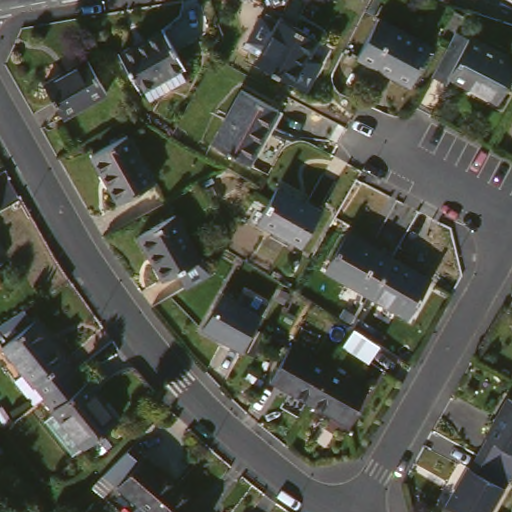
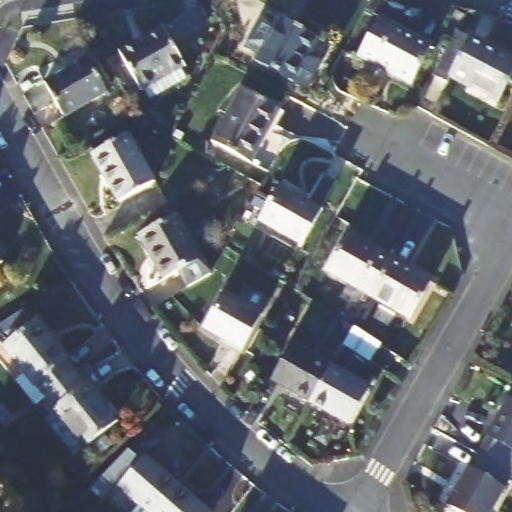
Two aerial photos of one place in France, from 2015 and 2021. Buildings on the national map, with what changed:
unchanged [(391,12),(445,42),(425,79),(370,50),(391,12)]
unchanged [(319,85),(306,78),(268,57),(293,13),(331,33),(322,49),(335,57),(319,85)]
unchanged [(154,90),(147,77),(145,79),(123,43),(167,18),(187,55),(184,57),(190,70),(154,90)]
unchanged [(470,24),(470,22),(512,45),(512,93),(511,94),(465,69),(462,74),(447,66),(470,24)]
unchanged [(96,53),(115,89),(72,114),(52,79),(96,53)]
unchanged [(250,83),(287,103),(257,157),(220,137),(250,83)]
unchanged [(142,129),(169,178),(134,197),(106,150),(142,129)]
unchanged [(292,180),(335,205),(315,240),(272,216),(292,180)]
unchanged [(184,208),(210,253),(219,270),(199,281),(189,265),(172,274),(147,229),(184,208)]
unchanged [(0,224),(0,211),(6,221),(0,224)]
unchanged [(335,265),(356,227),(400,252),(377,290),(335,265)]
unchanged [(15,259),(0,268),(0,230),(9,246),(15,259)]
unchanged [(400,252),(440,275),(417,314),(377,290),(400,252)]
unchanged [(252,280),(276,294),(268,308),(270,308),(250,345),(211,323),(231,286),(245,294),(252,280)]
unchanged [(51,312),(82,350),(80,351),(89,363),(86,365),(59,387),(49,395),(30,370),(38,364),(17,338),(51,312)]
unchanged [(378,343),(368,360),(342,343),(353,327),(378,343)]
unchanged [(285,375),(304,339),(342,360),(322,396),(285,375)]
unchanged [(342,360),(381,382),(361,419),(322,396),(342,360)]
unchanged [(58,413),(70,402),(59,387),(86,365),(89,363),(98,375),(100,373),(131,412),(99,438),(87,448),(58,413)]
unchanged [(497,433),(494,431),(512,400),(512,463),(487,449),(497,433)]
unchanged [(4,429),(0,424),(0,405),(12,423),(4,429)]
unchanged [(0,452),(0,436),(8,447),(0,452)]
unchanged [(476,461),(484,446),(487,449),(512,463),(512,483),(496,512),(476,512),(455,500),(476,461)]
unchanged [(130,463),(145,447),(157,458),(159,456),(192,485),(190,487),(169,512),(161,512),(118,475),(130,463)]
unchanged [(190,487),(192,485),(222,512),(169,512),(190,487)]

